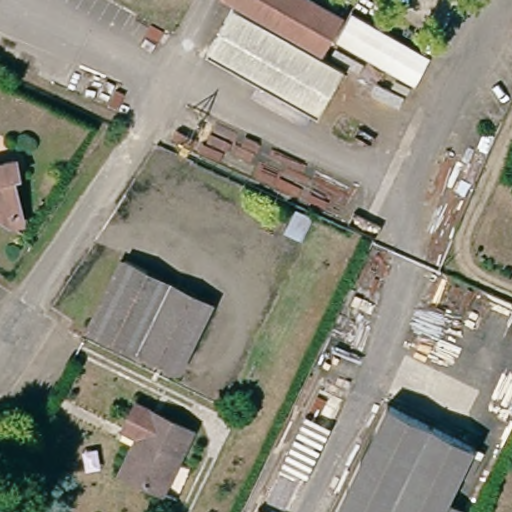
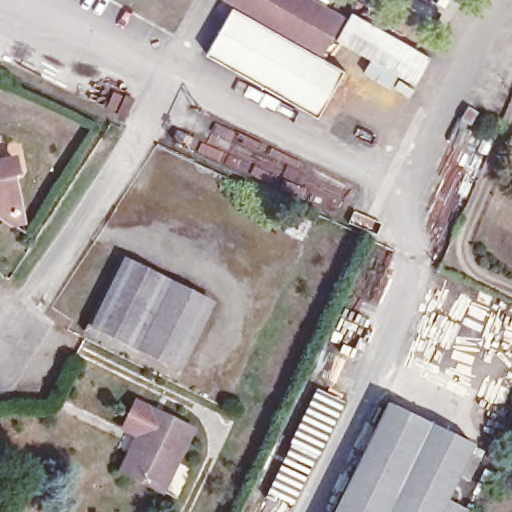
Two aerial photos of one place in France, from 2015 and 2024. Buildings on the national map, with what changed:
unchanged [(339,15),(327,36),(320,49),(234,0),(312,0),(339,15)]
unchanged [(341,67),(316,113),(302,105),(207,53),(232,7),(317,54),(327,60),(333,63),(341,67)]
unchanged [(437,58),(422,88),(342,43),(358,11),(437,58)]
unchanged [(5,226),(0,224),(0,165),(13,163),(15,176),(10,177),(16,212),(5,226)]
unchanged [(145,334),(136,352),(92,330),(124,262),(140,270),(117,321),(145,334)]
unchanged [(140,270),(213,306),(179,372),(136,352),(145,334),(117,321),(140,270)]
unchanged [(467,441),(441,496),(466,508),(464,512),(330,512),(381,401),(467,441)]
unchanged [(181,466),(175,463),(160,493),(125,476),(140,447),(126,440),(139,415),(157,424),(159,422),(195,439),(181,466)]

